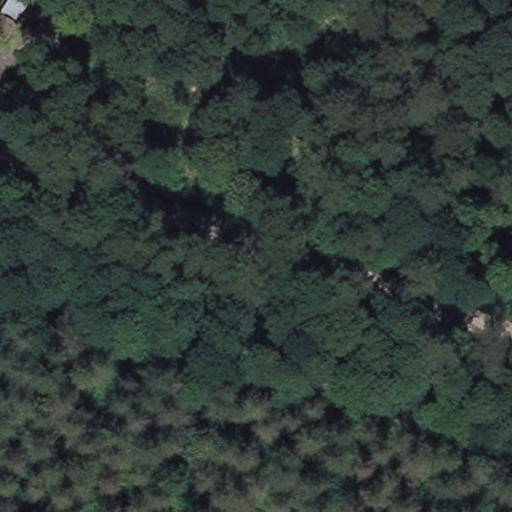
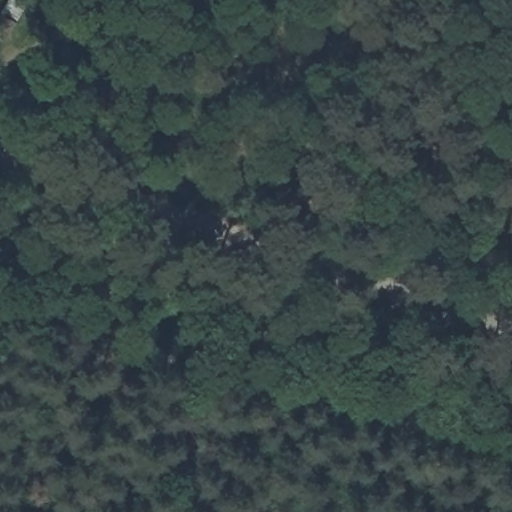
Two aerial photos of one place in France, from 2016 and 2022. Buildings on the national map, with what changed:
unchanged [(0,40),(0,15),(9,0),(29,0),(3,41),(0,40)]

